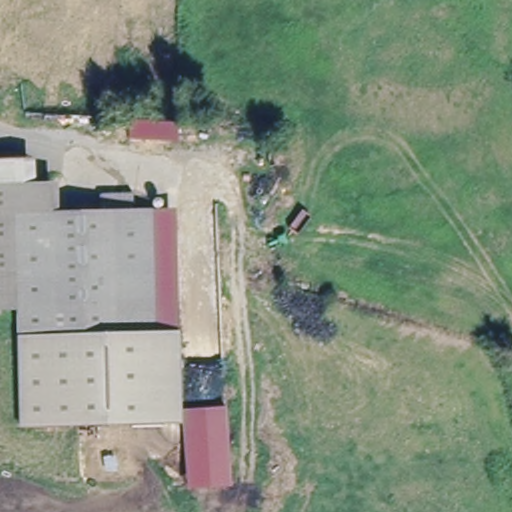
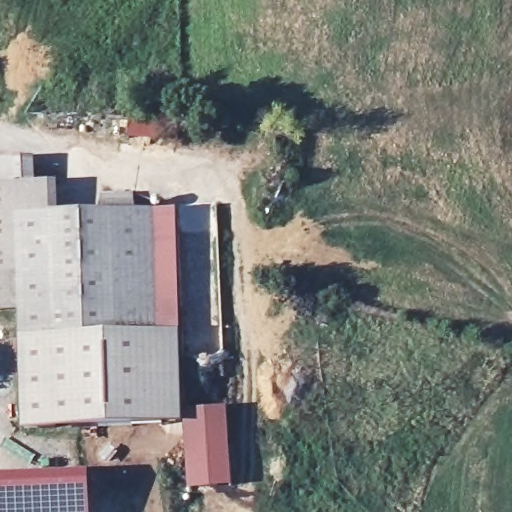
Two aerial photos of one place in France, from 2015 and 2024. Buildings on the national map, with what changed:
unchanged [(17,277),(0,278),(0,177),(45,173),(46,208),(157,202),(173,421),(29,429),(17,277)]
unchanged [(203,483),(198,420),(198,403),(240,401),(245,481),(203,483)]
new [(91,512),(0,512),(0,478),(90,477),(91,512)]

